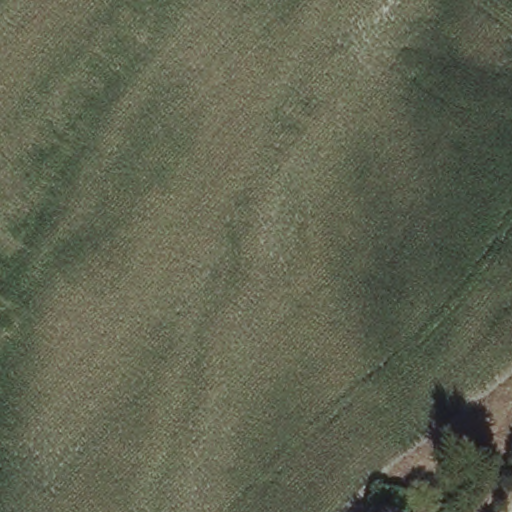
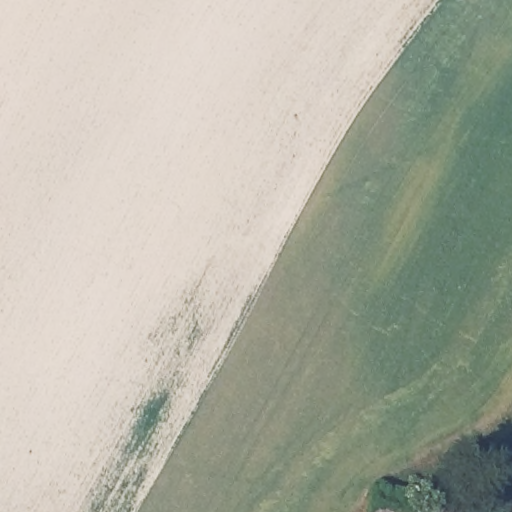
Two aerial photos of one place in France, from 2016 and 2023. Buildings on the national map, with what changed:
unchanged [(464,512),(372,512),(382,487),(465,511),(464,512)]

